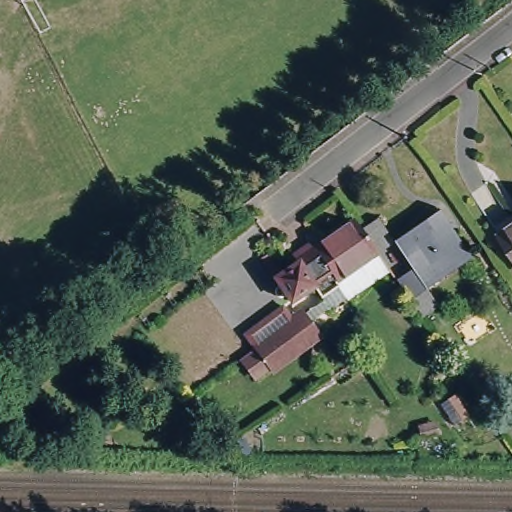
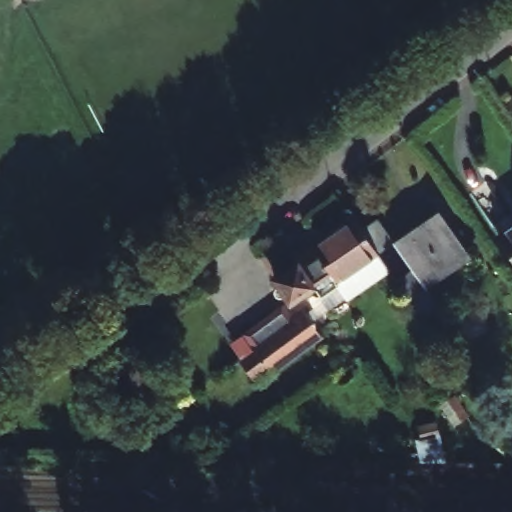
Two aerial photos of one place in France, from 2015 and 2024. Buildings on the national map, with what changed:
unchanged [(429,291),(398,245),(442,215),(474,261),(429,291)]
unchanged [(291,295),(290,295),(288,295),(287,295),(286,295),(285,295),(285,294),(284,293),(284,291),(284,290),(284,288),(285,287),(286,286),(281,279),(287,275),(304,264),(300,257),(316,247),(319,250),(360,224),(366,233),(367,234),(383,222),(398,245),(382,256),(341,284),(344,289),(327,299),(325,295),(319,287),(302,298),(296,302),(291,295)]
unchanged [(512,222),(512,252),(498,232),(512,222)]
unchanged [(297,316),(313,340),(268,370),(252,345),(297,316)]

